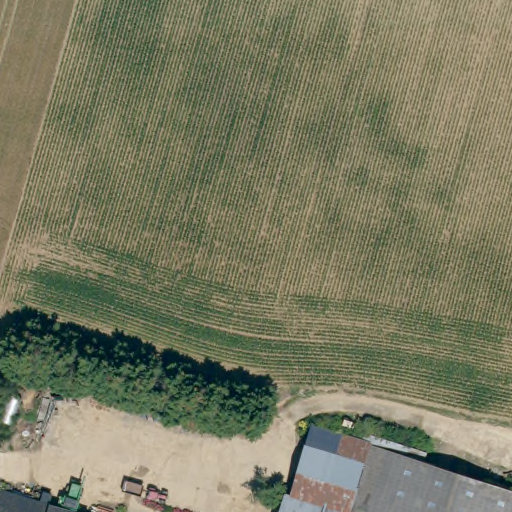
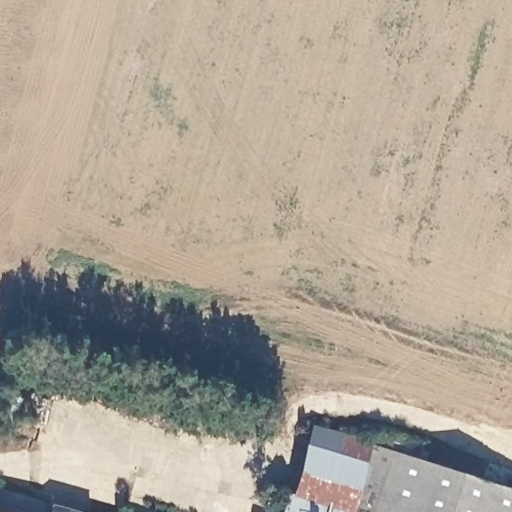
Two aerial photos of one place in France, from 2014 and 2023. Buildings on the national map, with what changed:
unchanged [(274,512),(280,490),(287,492),(308,422),(359,437),(362,428),(421,446),(418,455),(512,483),(512,512),(274,512)]
unchanged [(0,512),(0,491),(72,512),(0,512)]

